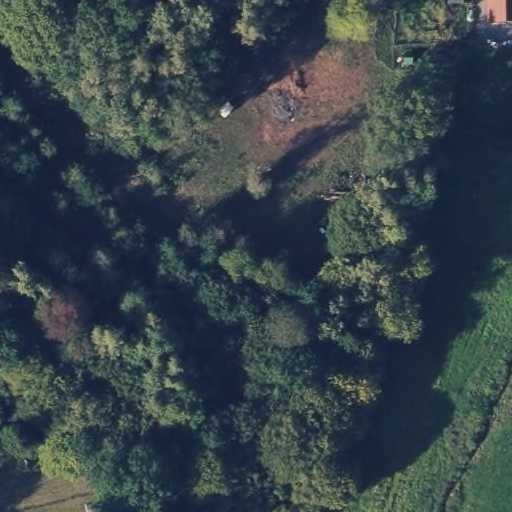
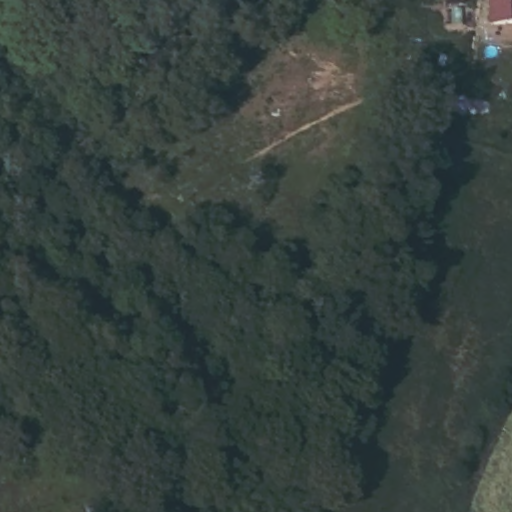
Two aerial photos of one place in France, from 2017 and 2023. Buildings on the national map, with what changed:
unchanged [(512,25),(488,27),(488,0),(512,0),(512,25)]
unchanged [(8,405),(21,417),(17,421),(5,409),(8,405)]

